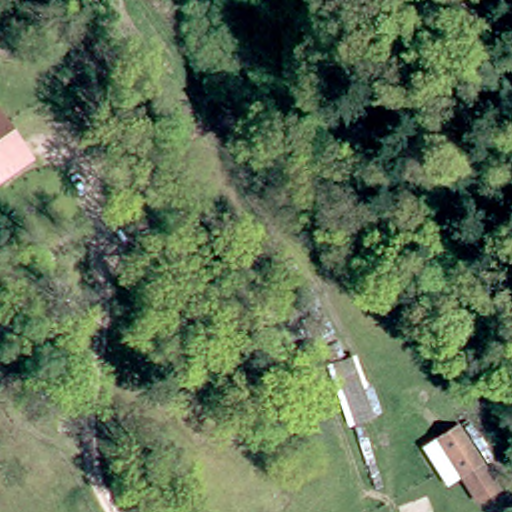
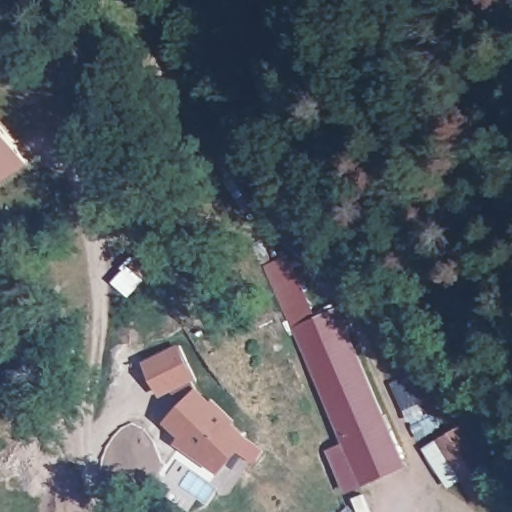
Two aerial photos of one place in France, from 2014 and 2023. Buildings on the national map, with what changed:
unchanged [(27,166),(0,186),(0,128),(27,166)]
new [(310,307),(289,317),(267,268),(290,257),(310,307)]
new [(289,317),(310,307),(315,317),(336,307),(349,332),(302,353),(289,317)]
new [(409,464),(363,486),(302,353),(349,332),(409,464)]
new [(182,347),(202,384),(163,400),(147,363),(182,347)]
new [(185,400),(197,388),(212,401),(215,398),(238,419),(235,423),(254,437),(224,471),(200,455),(198,457),(177,439),(180,435),(165,421),(185,400)]
unchanged [(452,424),(492,486),(473,498),(454,472),(440,481),(417,444),(452,424)]
new [(363,486),(346,492),(326,449),(342,441),(363,486)]
new [(349,504),(356,512),(340,512),(349,504)]

